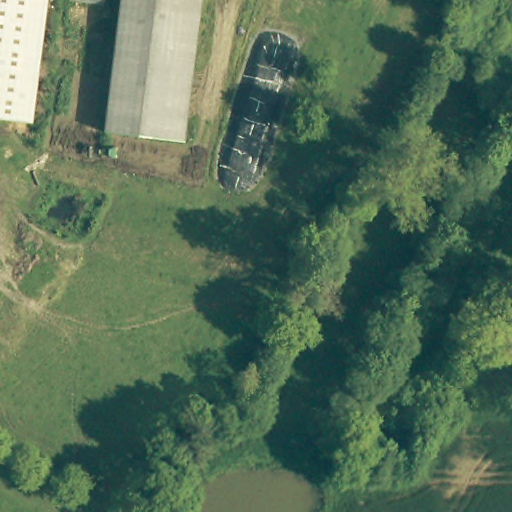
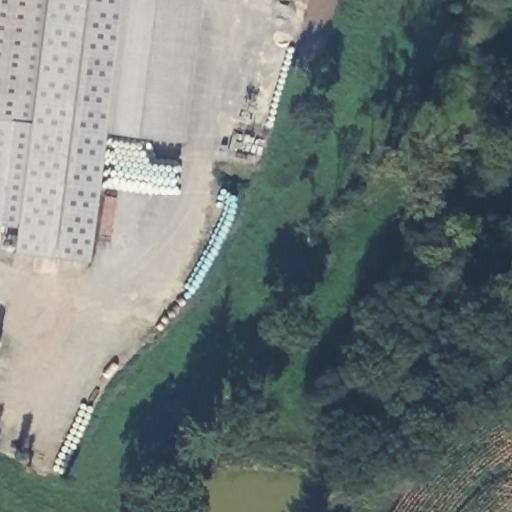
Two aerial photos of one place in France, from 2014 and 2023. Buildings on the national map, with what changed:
unchanged [(34,73),(23,127),(0,122),(0,0),(49,0),(34,73)]
new [(23,127),(34,73),(49,0),(115,0),(97,132),(102,132),(86,261),(11,252),(14,225),(0,224),(0,122),(23,127)]
unchanged [(97,132),(115,0),(203,0),(186,144),(97,132)]

